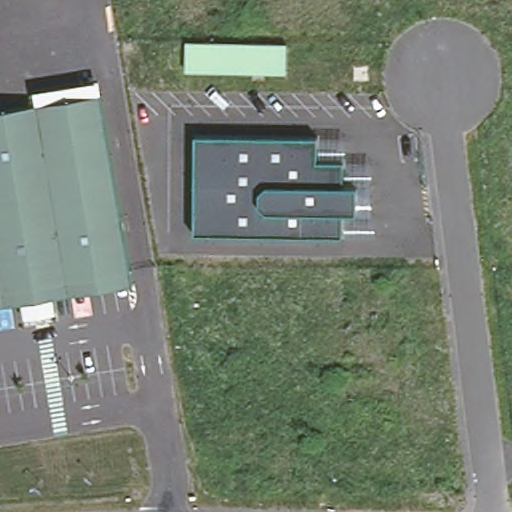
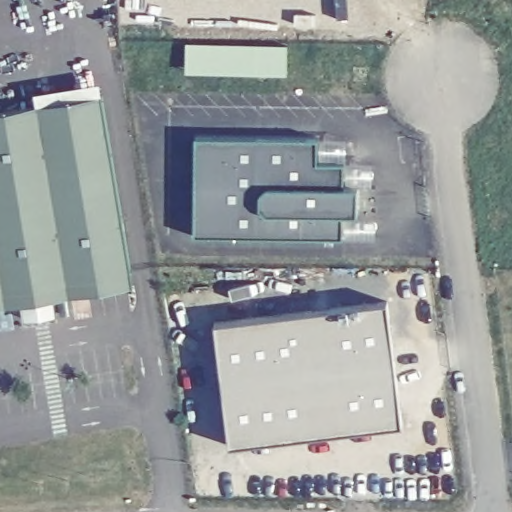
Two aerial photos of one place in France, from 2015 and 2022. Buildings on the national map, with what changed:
unchanged [(37,105),(34,92),(98,82),(131,285),(52,298),(54,315),(23,319),(21,305),(0,308),(0,111),(37,105)]
unchanged [(316,140),(316,161),(343,163),(343,186),(359,187),(358,212),(343,212),(343,237),(193,235),(196,138),(316,140)]
new [(401,423),(230,443),(215,322),(386,300),(401,423)]

